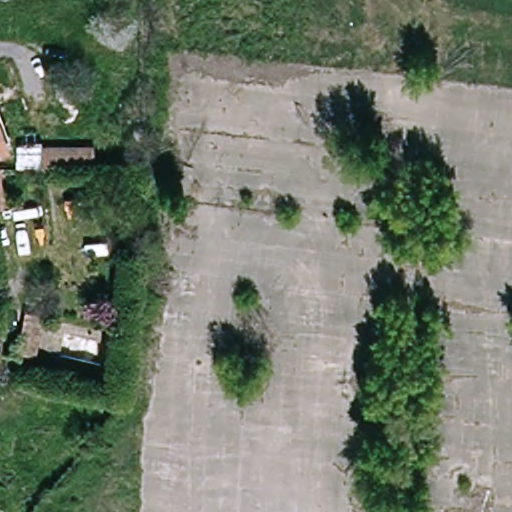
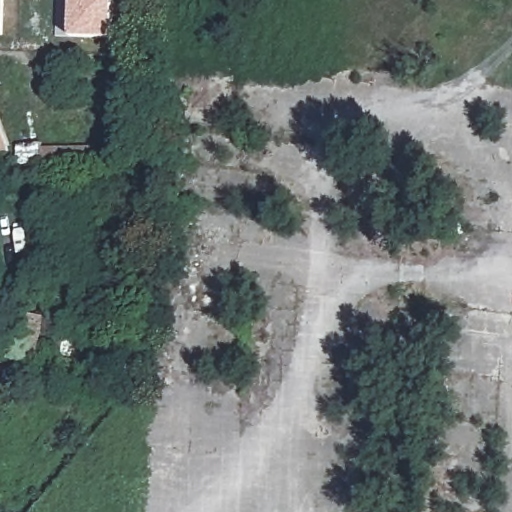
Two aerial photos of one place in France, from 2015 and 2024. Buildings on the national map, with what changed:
new [(2,36),(0,35),(0,0),(4,0),(2,36)]
new [(114,38),(70,36),(71,0),(114,0),(114,38)]
unchanged [(0,152),(0,116),(10,149),(0,152)]
unchanged [(12,165),(12,145),(103,145),(104,165),(12,165)]
unchanged [(0,167),(3,208),(0,208),(0,167)]
unchanged [(30,309),(49,312),(43,352),(25,350),(30,309)]
unchanged [(9,353),(0,351),(0,323),(11,325),(9,353)]

